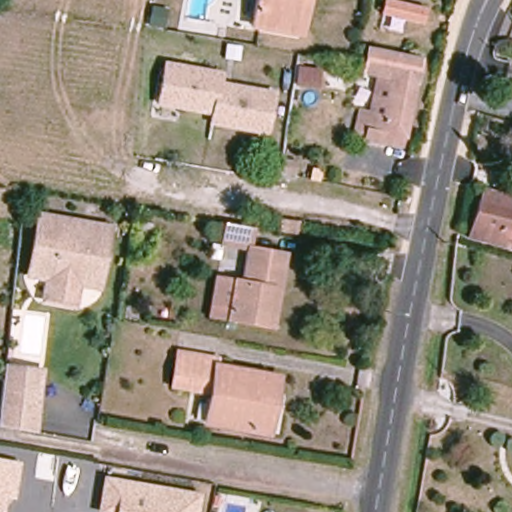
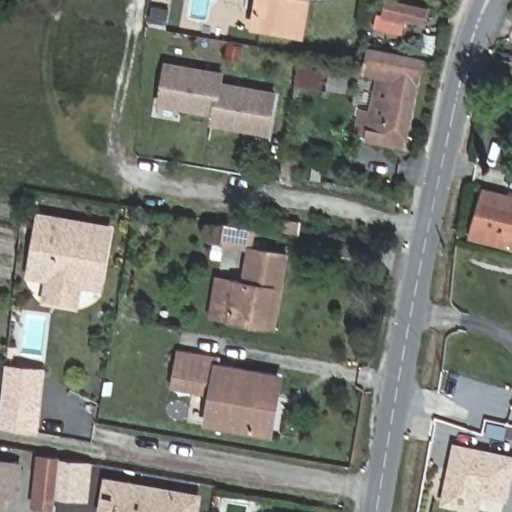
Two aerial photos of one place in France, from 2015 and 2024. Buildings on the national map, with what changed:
unchanged [(259,0),(299,0),(293,33),(254,25),(259,0)]
unchanged [(380,14),(383,0),(394,0),(426,7),(423,25),(380,14)]
unchanged [(149,28),(152,9),(170,9),(166,29),(149,28)]
unchanged [(401,136),(363,128),(362,133),(352,131),(356,109),(367,111),(374,74),(360,71),(365,49),(416,60),(401,136)]
unchanged [(268,135),(207,124),(209,115),(156,106),(163,61),(223,70),(222,81),(276,90),(268,135)]
demolished [(297,66),(293,93),(276,91),(280,64),(297,66)]
unchanged [(299,67),(322,70),(320,87),(296,83),(299,67)]
unchanged [(512,211),(512,248),(470,237),(479,203),(512,211)]
unchanged [(45,297),(48,284),(49,275),(31,272),(41,213),(110,226),(101,277),(99,285),(79,281),(77,289),(75,302),(45,297)]
unchanged [(298,223),(297,232),(279,229),(281,220),(298,223)]
unchanged [(252,227),(248,246),(224,242),(227,223),(252,227)]
unchanged [(281,288),(273,286),(266,325),(228,319),(235,280),(244,281),(249,248),(286,254),(281,288)]
unchanged [(213,392),(174,385),(180,353),(219,360),(218,366),(271,375),(267,397),(275,399),(269,434),(207,422),(213,392)]
unchanged [(1,425),(6,386),(9,365),(48,371),(44,393),(37,432),(1,425)]
new [(512,457),(512,459),(503,497),(479,492),(475,509),(442,501),(445,484),(454,444),(512,457)]
new [(54,494),(53,506),(33,504),(36,478),(38,454),(58,457),(88,462),(86,472),(83,497),(54,494)]
unchanged [(6,497),(4,512),(1,512),(0,512),(0,456),(22,460),(14,498),(6,497)]
unchanged [(96,512),(103,474),(202,492),(199,512),(96,512)]

